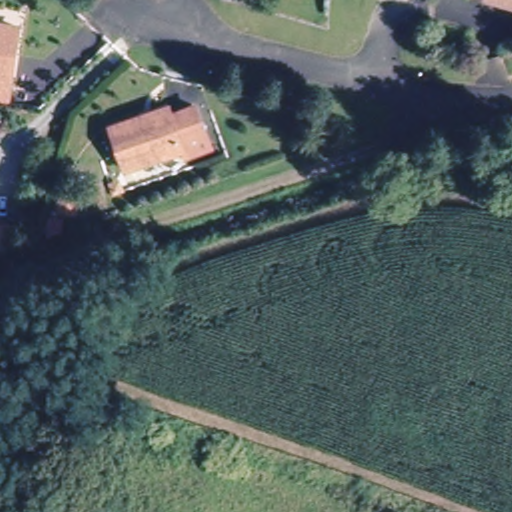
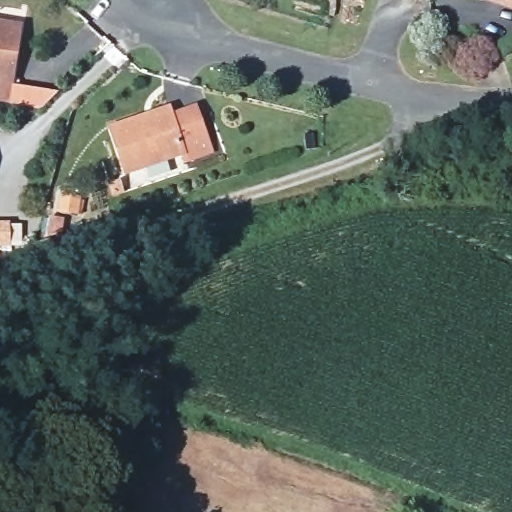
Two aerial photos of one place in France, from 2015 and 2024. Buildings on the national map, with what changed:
unchanged [(512,0),(512,7),(492,0),(512,0)]
unchanged [(7,101),(0,100),(0,24),(19,27),(15,55),(11,77),(7,101)]
unchanged [(139,119),(141,124),(170,115),(171,116),(195,107),(210,150),(183,160),(181,152),(126,171),(112,128),(139,119)]
unchanged [(8,225),(8,245),(0,245),(0,225),(8,225)]

